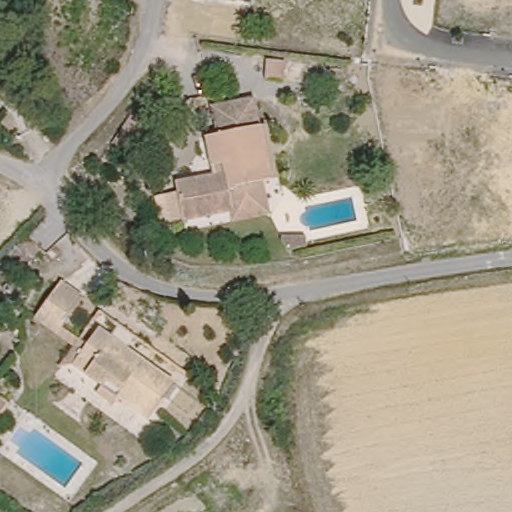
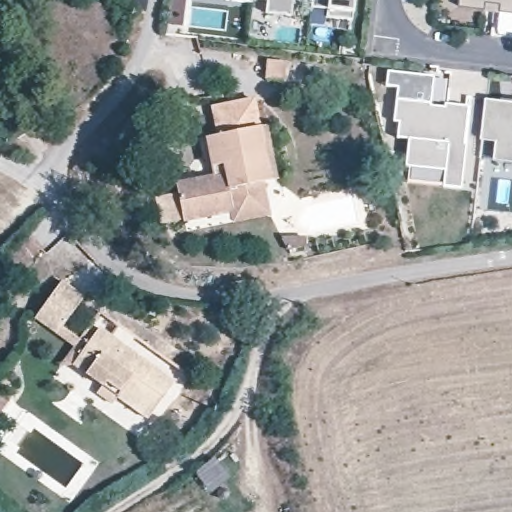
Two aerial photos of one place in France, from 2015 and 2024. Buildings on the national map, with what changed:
unchanged [(252,1),(243,0),(252,0),(252,1)]
new [(290,15),(267,13),(267,0),(292,0),(290,15)]
unchanged [(350,23),(324,20),(325,12),(309,10),(310,0),(353,0),(350,23)]
new [(500,14),(501,7),(487,4),(486,12),(460,9),(461,0),(512,0),(512,15),(500,14)]
unchanged [(285,58),(282,77),(265,75),(267,57),(285,58)]
new [(397,88),(387,86),(389,71),(433,76),(429,107),(434,107),(434,114),(442,116),(444,105),(467,107),(463,145),(465,146),(460,190),(407,184),(408,168),(405,168),(408,140),(396,139),(398,124),(392,123),(397,88)]
new [(492,160),(493,141),(482,141),(487,95),(512,100),(512,162),(492,160)]
unchanged [(182,189),(181,181),(219,174),(217,162),(212,134),(220,133),(215,104),(259,97),(274,178),(267,179),(270,195),(274,213),(236,221),(234,208),(188,217),(165,221),(160,194),(182,189)]
unchanged [(149,130),(133,157),(111,144),(129,118),(149,130)]
unchanged [(9,284),(0,277),(0,266),(25,237),(39,249),(9,284)]
unchanged [(61,283),(83,299),(56,335),(35,319),(61,283)]
unchanged [(148,419),(116,396),(112,402),(61,367),(75,349),(81,340),(87,346),(99,331),(175,383),(148,419)]
unchanged [(0,413),(0,390),(11,398),(0,413)]

